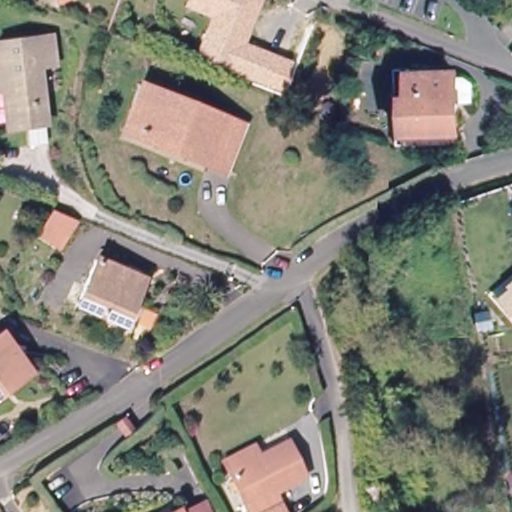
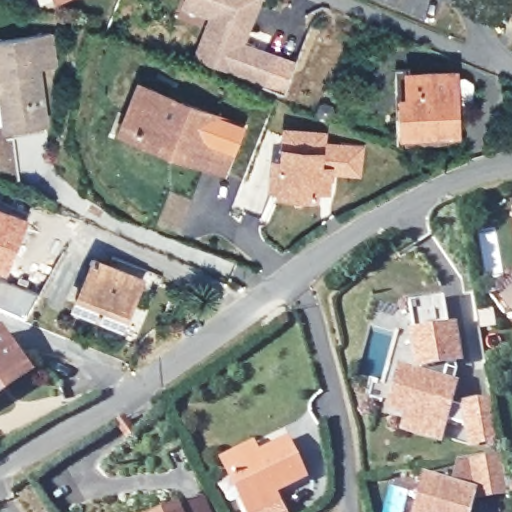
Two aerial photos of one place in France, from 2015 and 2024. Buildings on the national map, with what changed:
unchanged [(194,55),(210,16),(183,4),(185,0),(227,0),(203,59),(194,55)]
unchanged [(229,70),(203,59),(227,0),(258,0),(255,7),(250,5),(246,12),(252,14),(239,45),(271,58),(261,83),(229,70)]
unchanged [(51,68),(35,70),(40,128),(1,131),(0,121),(0,42),(49,38),(51,68)]
unchanged [(400,143),(399,79),(412,78),(412,71),(457,70),(460,133),(408,134),(408,143),(400,143)]
unchanged [(228,175),(140,139),(122,132),(141,84),(158,91),(248,127),(228,175)]
new [(272,157),(277,158),(283,124),(329,129),(328,138),(365,144),(362,176),(334,174),(332,189),(313,190),(312,199),(267,189),(272,157)]
new [(30,217),(7,275),(0,272),(0,207),(30,217)]
demolished [(35,238),(45,213),(65,221),(53,245),(35,238)]
unchanged [(120,329),(75,311),(94,265),(140,284),(120,329)]
new [(1,278),(39,294),(26,322),(0,311),(0,280),(1,278)]
unchanged [(510,288),(508,285),(512,281),(512,314),(498,298),(510,288)]
new [(397,431),(402,418),(384,413),(396,365),(411,370),(405,335),(414,333),(407,304),(440,299),(447,327),(454,326),(461,364),(455,365),(455,370),(452,379),(457,381),(450,405),(446,419),(440,441),(397,431)]
demolished [(512,327),(512,403),(493,331),(512,327)]
unchanged [(0,341),(27,378),(0,399),(0,342),(0,341)]
new [(466,448),(462,421),(446,419),(450,405),(460,408),(458,401),(491,396),(499,441),(466,448)]
unchanged [(297,479),(266,493),(274,512),(240,512),(220,467),(215,456),(250,441),(255,451),(280,440),(297,479)]
new [(456,462),(500,455),(504,477),(512,476),(512,493),(472,498),(469,512),(410,512),(420,474),(450,482),(456,462)]

